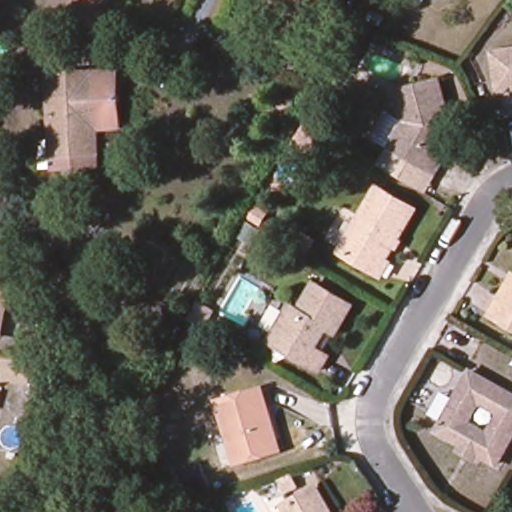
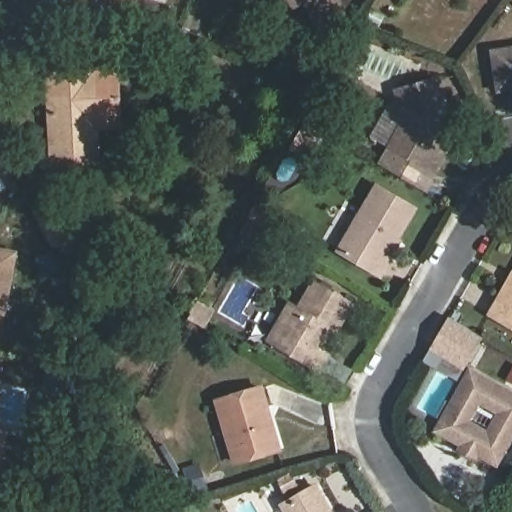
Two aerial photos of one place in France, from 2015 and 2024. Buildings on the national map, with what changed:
unchanged [(101,31),(55,14),(60,0),(102,0),(111,4),(101,31)]
unchanged [(306,4),(289,11),(284,0),(335,0),(338,6),(312,17),(306,4)]
unchanged [(512,53),(512,93),(502,95),(498,55),(512,53)]
unchanged [(54,175),(54,154),(51,73),(96,71),(98,130),(99,152),(99,174),(54,175)]
unchanged [(96,71),(119,71),(120,130),(98,130),(96,71)]
unchanged [(438,155),(445,160),(447,162),(438,176),(392,149),(404,127),(398,93),(442,85),(451,132),(438,155)]
unchanged [(412,212),(388,255),(395,258),(384,279),(344,256),(380,194),(412,212)]
unchanged [(57,213),(58,221),(68,222),(70,240),(51,240),(50,240),(36,213),(57,213)]
unchanged [(3,324),(0,340),(0,251),(16,255),(3,324)]
unchanged [(333,332),(319,355),(328,361),(331,362),(322,377),(275,350),(296,311),(307,316),(323,290),(356,309),(341,337),(333,332)]
unchanged [(492,314),(500,299),(507,303),(512,294),(512,325),(492,314)]
new [(451,318),(486,338),(468,368),(432,348),(451,318)]
unchanged [(471,373),(512,399),(512,437),(497,465),(480,455),(481,452),(465,442),(463,445),(436,428),(471,373)]
unchanged [(255,391),(270,451),(229,463),(212,402),(255,391)]
unchanged [(332,512),(273,512),(286,505),(318,487),(332,512)]

